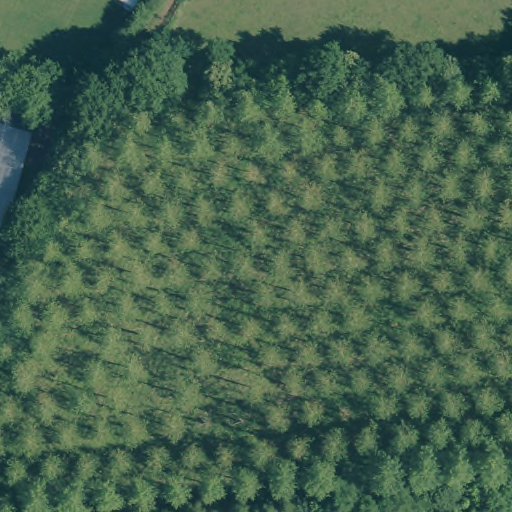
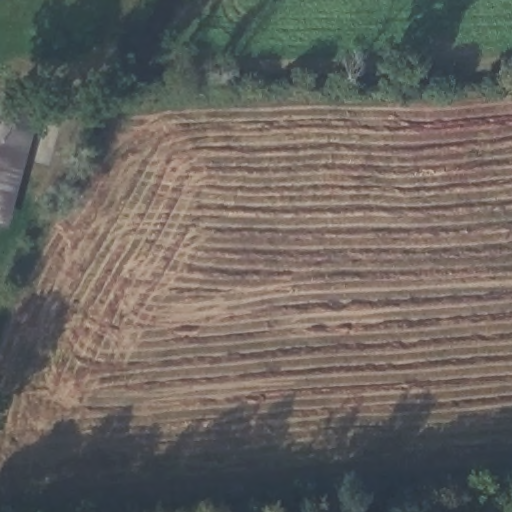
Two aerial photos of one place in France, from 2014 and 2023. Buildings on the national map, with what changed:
unchanged [(0,224),(0,110),(25,116),(2,224),(0,224)]

